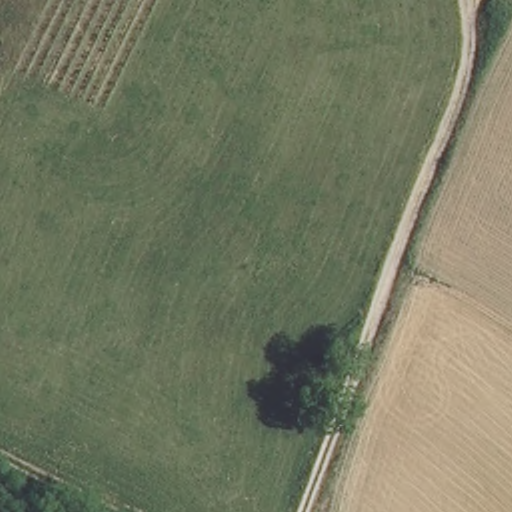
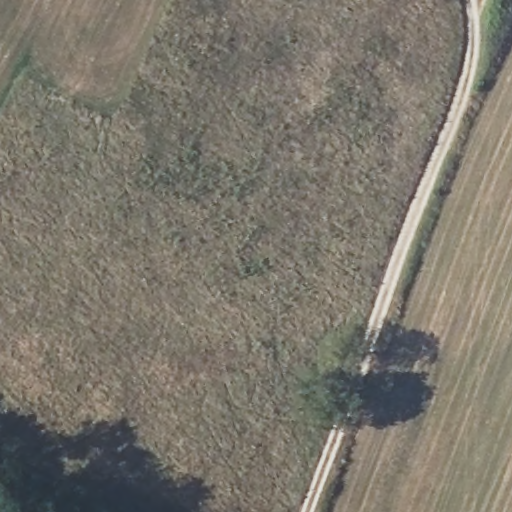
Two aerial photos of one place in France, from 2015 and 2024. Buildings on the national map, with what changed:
unchanged [(490,8),(495,0),(512,10),(512,11),(507,18),(503,26),(486,16),(490,8)]

